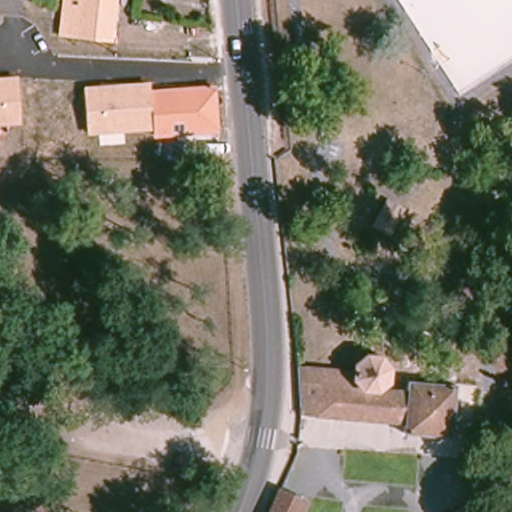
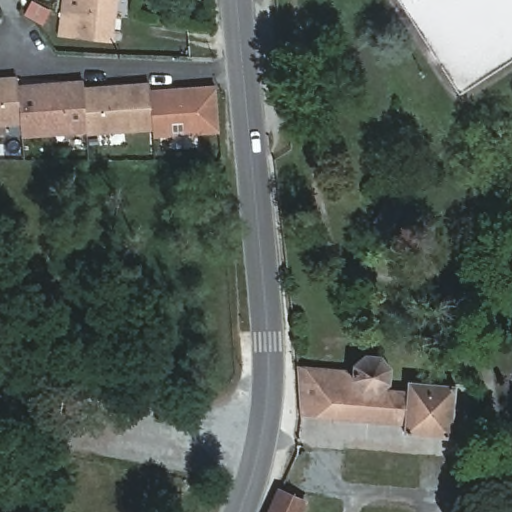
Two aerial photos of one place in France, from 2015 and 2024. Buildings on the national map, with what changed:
unchanged [(68,0),(120,0),(116,41),(74,35),(65,33),(67,12),(68,0)]
unchanged [(16,75),(16,83),(20,124),(0,125),(0,76),(16,75)]
new [(83,79),(84,85),(87,132),(20,137),(20,124),(16,83),(83,79)]
unchanged [(149,82),(149,90),(150,98),(152,131),(87,136),(87,132),(84,85),(149,82)]
unchanged [(214,86),(217,133),(152,137),(152,131),(150,98),(149,90),(214,86)]
unchanged [(303,365),(358,368),(359,361),(372,351),(385,352),(395,364),(393,377),(383,386),(415,388),(415,379),(460,382),(455,432),(410,428),(411,418),(305,411),(303,365)]
unchanged [(280,492),(305,504),(301,512),(271,512),(280,492)]

